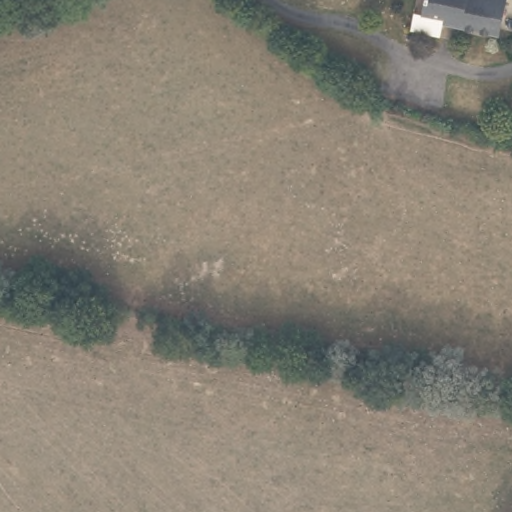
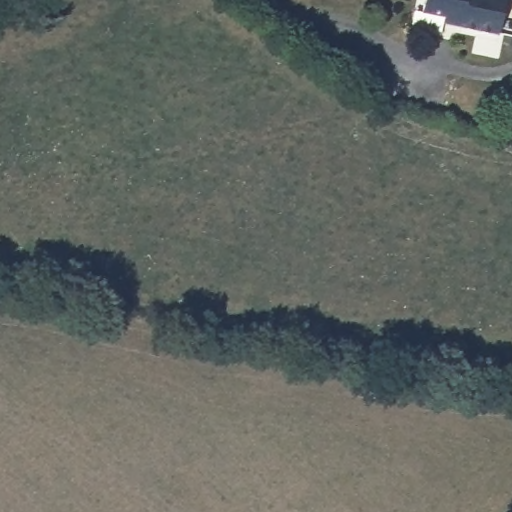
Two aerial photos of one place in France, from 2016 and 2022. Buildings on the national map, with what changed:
unchanged [(442,21),(443,15),(421,9),(424,0),(507,0),(499,33),(442,21)]

